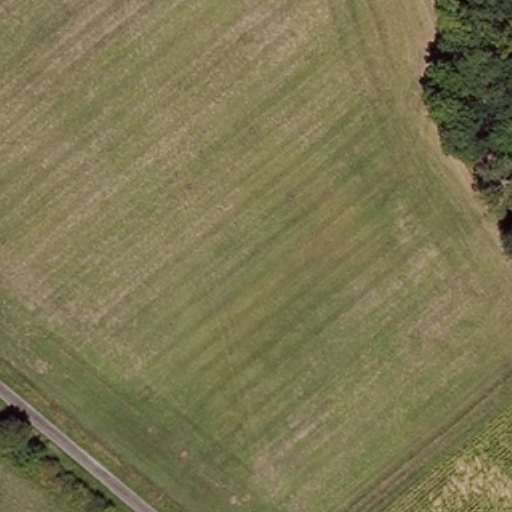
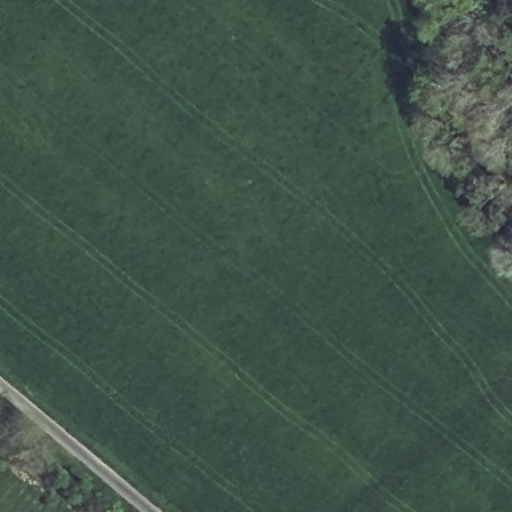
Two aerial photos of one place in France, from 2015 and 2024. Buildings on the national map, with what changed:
[]

